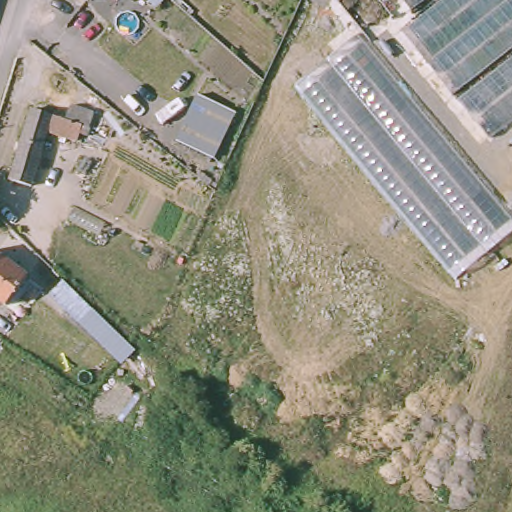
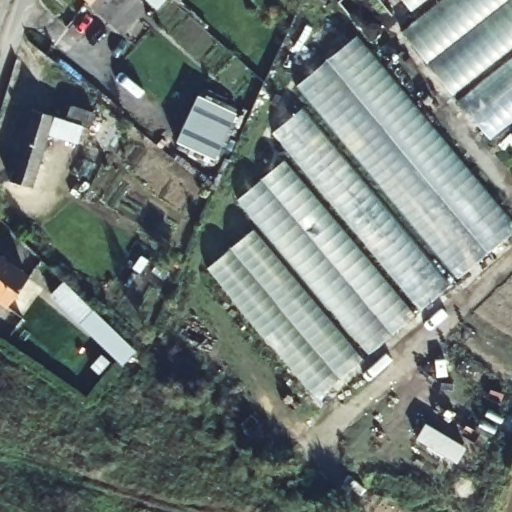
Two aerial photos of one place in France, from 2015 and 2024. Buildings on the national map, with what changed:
unchanged [(67,0),(80,0),(74,6),(67,0)]
unchanged [(411,11),(402,0),(426,0),(411,11)]
unchanged [(402,32),(442,0),(512,0),(512,48),(453,96),(402,32)]
unchanged [(512,232),(455,280),(294,85),(356,34),(512,223),(512,232)]
unchanged [(456,100),(512,56),(512,122),(489,140),(456,100)]
unchanged [(226,113),(219,127),(204,158),(168,141),(187,99),(188,95),(226,113)]
unchanged [(48,115),(51,101),(76,107),(68,139),(41,132),(27,183),(4,176),(23,108),(48,115)]
new [(418,308),(274,132),(306,105),(453,281),(418,308)]
new [(368,351),(237,196),(285,159),(413,313),(368,351)]
new [(316,396),(206,267),(254,227),(364,358),(316,396)]
unchanged [(22,276),(0,302),(0,259),(22,276)]
unchanged [(63,282),(135,351),(121,365),(50,295),(63,282)]

